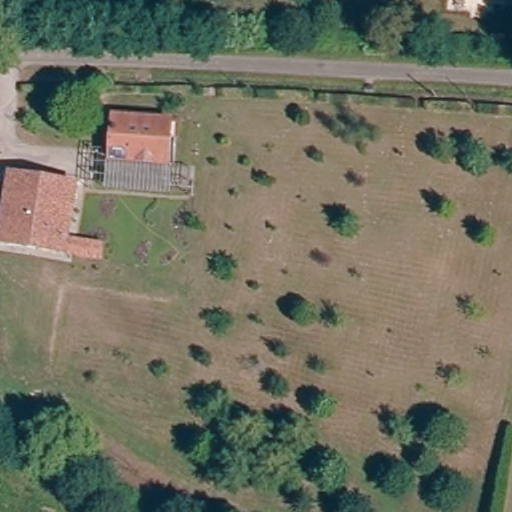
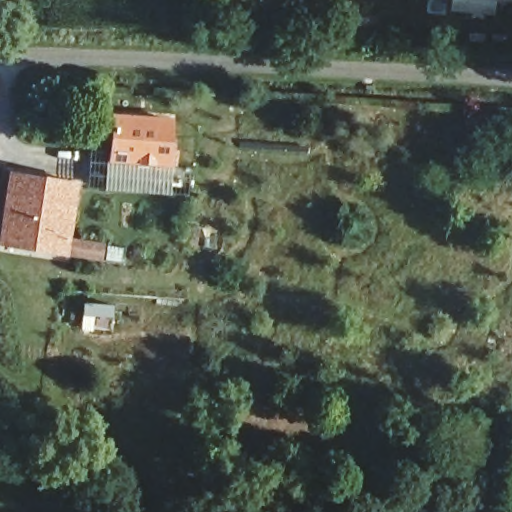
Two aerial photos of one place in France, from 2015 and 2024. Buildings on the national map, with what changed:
unchanged [(165,173),(109,159),(122,113),(176,126),(165,173)]
unchanged [(74,189),(60,256),(0,242),(0,240),(17,177),(74,189)]

